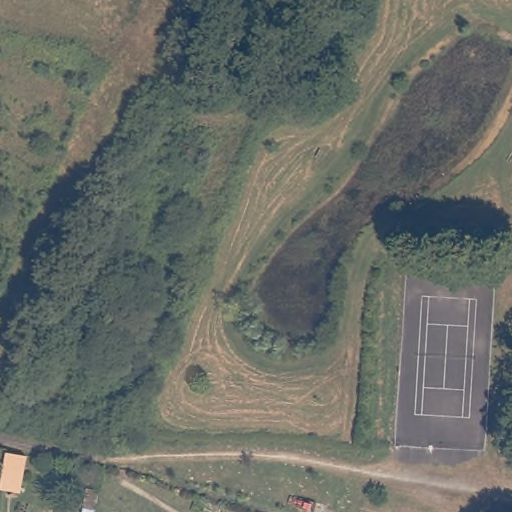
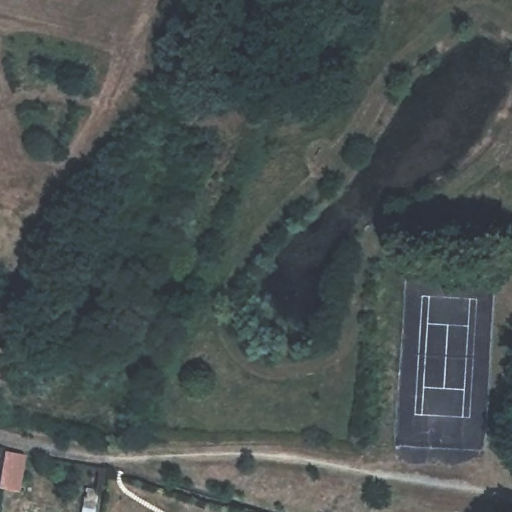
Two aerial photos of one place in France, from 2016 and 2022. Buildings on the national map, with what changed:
unchanged [(25,456),(19,493),(0,489),(0,476),(4,453),(25,456)]

